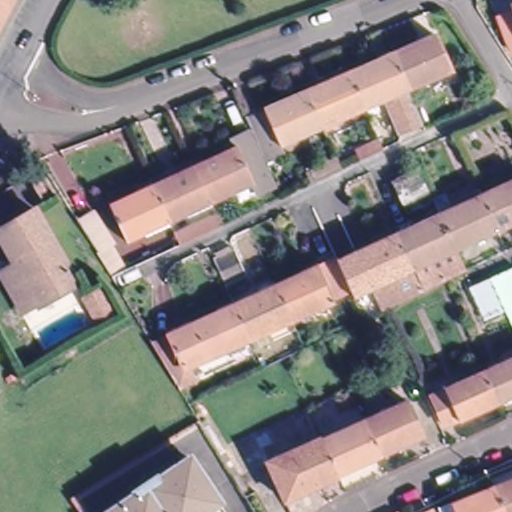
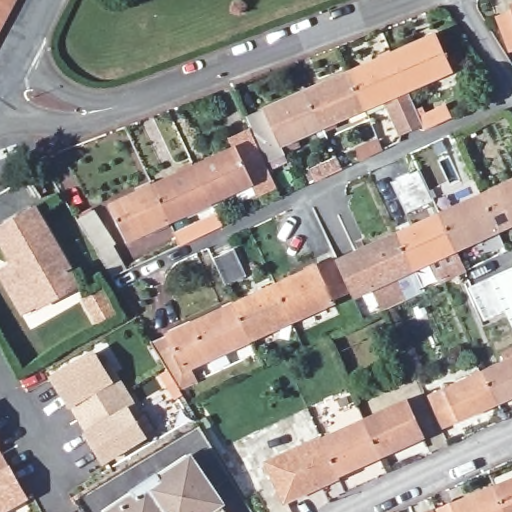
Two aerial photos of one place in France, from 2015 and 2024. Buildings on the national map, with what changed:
unchanged [(12,0),(0,21),(0,0),(12,0)]
unchanged [(512,9),(512,38),(502,12),(512,9)]
unchanged [(435,27),(452,66),(411,84),(395,45),(435,27)]
unchanged [(367,104),(350,64),(395,45),(411,84),(367,104)]
unchanged [(324,123),(307,84),(350,64),(367,104),(324,123)]
unchanged [(324,123),(261,151),(250,125),(244,113),(264,105),(263,102),(307,84),(324,123)]
unchanged [(405,125),(393,98),(413,89),(425,116),(405,125)]
unchanged [(234,140),(231,134),(250,125),(261,151),(273,177),(256,185),(252,177),(209,198),(191,160),(234,140)]
unchanged [(385,146),(360,157),(356,148),(381,137),(385,146)]
unchanged [(317,177),(310,161),(335,149),(342,165),(317,177)]
unchanged [(209,198),(166,220),(148,180),(191,160),(209,198)]
unchanged [(420,165),(432,194),(408,205),(395,176),(420,165)]
unchanged [(512,174),(512,221),(501,226),(484,187),(512,174)]
unchanged [(124,240),(106,199),(148,180),(166,220),(124,240)]
unchanged [(436,192),(450,186),(456,200),(484,187),(501,226),(459,245),(442,206),(436,192)]
unchanged [(442,206),(459,245),(416,265),(399,226),(442,206)]
unchanged [(109,272),(75,217),(93,209),(115,243),(111,246),(124,266),(109,272)]
unchanged [(220,221),(199,231),(176,241),(172,232),(215,211),(220,221)]
unchanged [(0,288),(0,279),(11,273),(0,252),(0,235),(30,219),(58,270),(69,291),(18,320),(3,291),(2,292),(0,288)]
unchanged [(359,292),(356,293),(350,280),(338,254),(342,252),(399,226),(416,265),(359,292)]
unchanged [(213,251),(226,245),(241,278),(228,284),(213,251)]
unchanged [(334,251),(351,289),(294,317),(276,278),(334,251)]
unchanged [(478,322),(463,288),(485,279),(512,267),(512,337),(501,312),(478,322)]
unchanged [(252,337),(234,298),(276,278),(294,317),(252,337)]
unchanged [(98,296),(109,317),(94,325),(83,304),(98,296)]
unchanged [(213,357),(210,354),(175,372),(174,370),(156,341),(195,322),(193,318),(234,298),(252,337),(213,357)]
new [(109,377),(118,372),(141,412),(135,417),(148,439),(101,467),(83,434),(87,432),(73,407),(68,410),(49,377),(95,350),(109,377)]
unchanged [(512,352),(512,393),(493,402),(477,368),(512,352)]
unchanged [(493,402),(440,425),(425,392),(477,368),(493,402)]
unchanged [(406,398),(424,436),(380,456),(363,418),(406,398)]
unchanged [(340,473),(341,476),(339,477),(290,498),(273,459),(321,437),(363,418),(380,456),(340,473)]
new [(29,498),(5,512),(0,512),(0,445),(29,498)]
unchanged [(198,455),(233,512),(107,512),(198,455)]
unchanged [(512,475),(512,512),(495,512),(484,487),(512,475)]
unchanged [(427,507),(439,502),(441,506),(484,487),(495,512),(430,512),(427,507)]
unchanged [(420,507),(422,512),(408,512),(420,507)]

